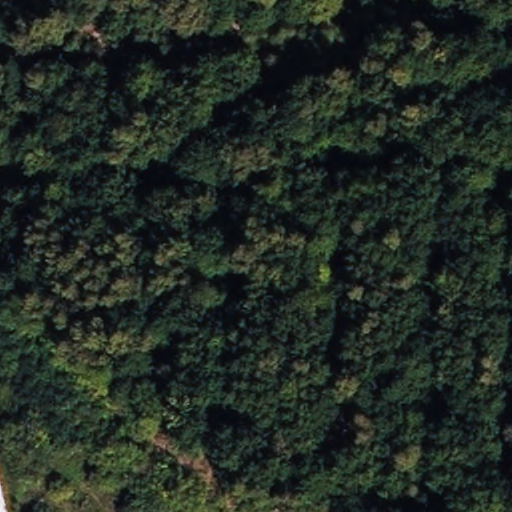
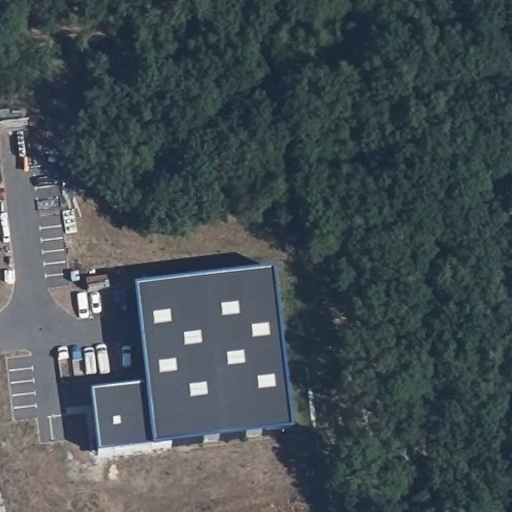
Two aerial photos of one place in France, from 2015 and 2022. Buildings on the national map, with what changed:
new [(150,385),(138,290),(275,275),(294,431),(102,456),(92,393),(150,385)]

